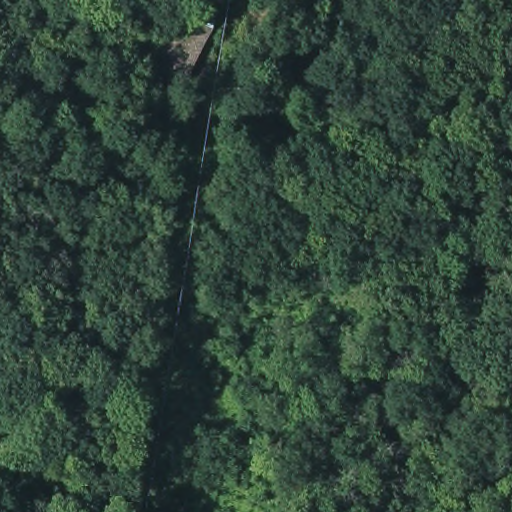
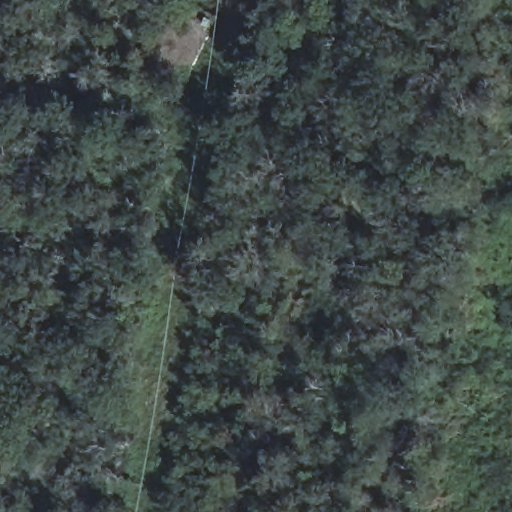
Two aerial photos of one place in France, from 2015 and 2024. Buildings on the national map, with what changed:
unchanged [(183,92),(149,70),(186,5),(212,28),(183,92)]

